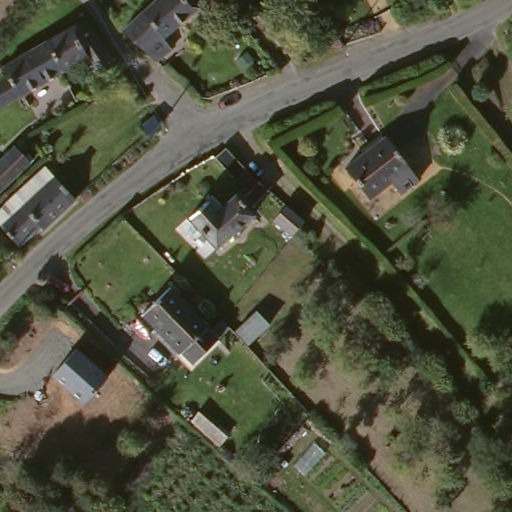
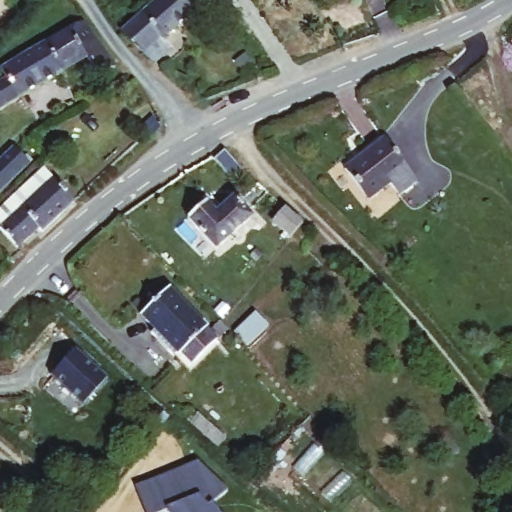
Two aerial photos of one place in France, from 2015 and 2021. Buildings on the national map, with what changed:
unchanged [(157,0),(201,0),(206,6),(160,45),(165,51),(152,63),(120,29),(157,0)]
unchanged [(117,58),(98,72),(85,55),(65,69),(44,36),(80,10),(117,58)]
unchanged [(2,63),(44,36),(65,69),(0,116),(0,87),(12,78),(2,63)]
unchanged [(346,169),(388,140),(410,172),(368,202),(346,169)]
unchanged [(221,150),(244,171),(235,179),(212,156),(221,150)]
unchanged [(29,166),(0,191),(0,166),(17,151),(29,166)]
unchanged [(16,246),(0,231),(0,210),(40,171),(74,204),(65,212),(44,234),(37,228),(16,246)]
unchanged [(194,227),(217,209),(224,215),(236,205),(250,221),(216,252),(194,227)]
unchanged [(300,225),(285,238),(272,226),(286,212),(300,225)]
unchanged [(227,329),(233,334),(192,373),(145,323),(174,295),(215,337),(225,327),(227,329)]
unchanged [(109,377),(84,405),(52,376),(76,349),(109,377)]
unchanged [(215,416),(236,442),(226,451),(205,425),(215,416)]
new [(165,512),(147,512),(136,487),(201,461),(230,487),(212,502),(219,512),(171,512),(170,510),(165,512)]

